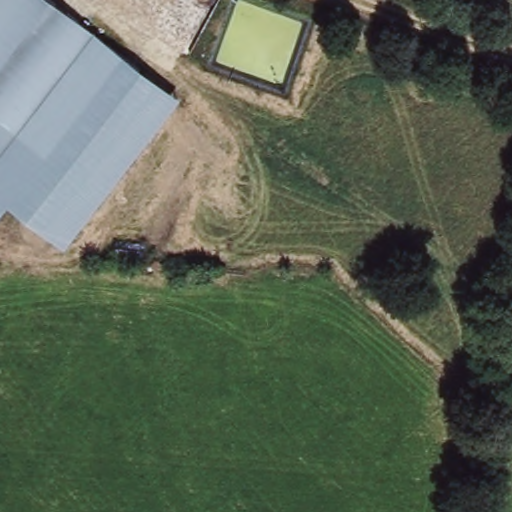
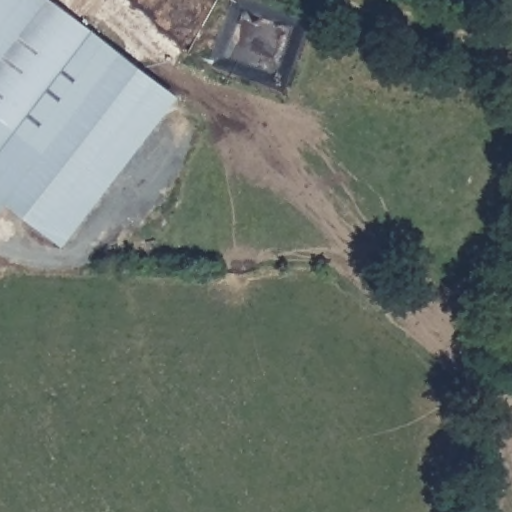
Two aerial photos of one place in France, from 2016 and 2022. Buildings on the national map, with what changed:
unchanged [(125,55),(42,157),(0,125),(0,0),(52,0),(125,55)]
unchanged [(42,157),(125,55),(179,96),(65,245),(7,203),(0,212),(0,125),(42,157)]

